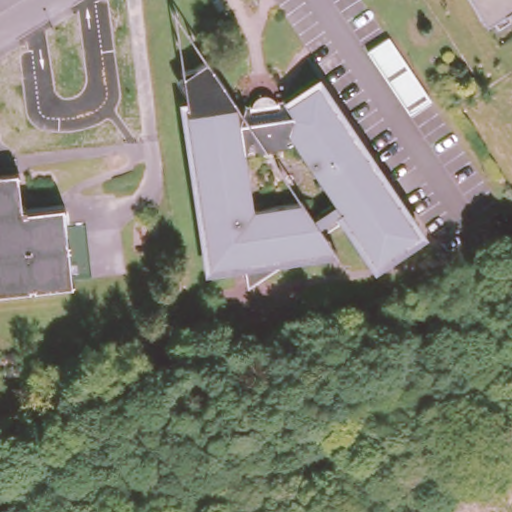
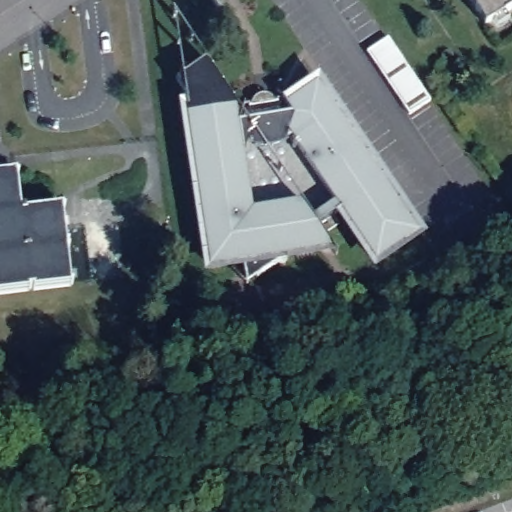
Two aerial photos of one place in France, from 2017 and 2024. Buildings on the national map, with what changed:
unchanged [(512,0),(512,6),(485,22),(471,0),(512,0)]
unchanged [(385,37),(427,100),(405,114),(363,51),(385,37)]
unchanged [(249,107),(287,102),(291,107),(320,89),(415,241),(374,267),(342,216),(310,236),(306,235),(308,254),(285,257),(285,264),(280,265),(251,282),(247,280),(244,263),(211,267),(190,107),(192,106),(190,90),(188,92),(181,82),(189,77),(188,72),(197,71),(213,62),(219,73),(245,114),(249,107)]
unchanged [(30,204),(30,209),(67,206),(74,283),(0,290),(0,173),(22,172),(24,205),(30,204)]

